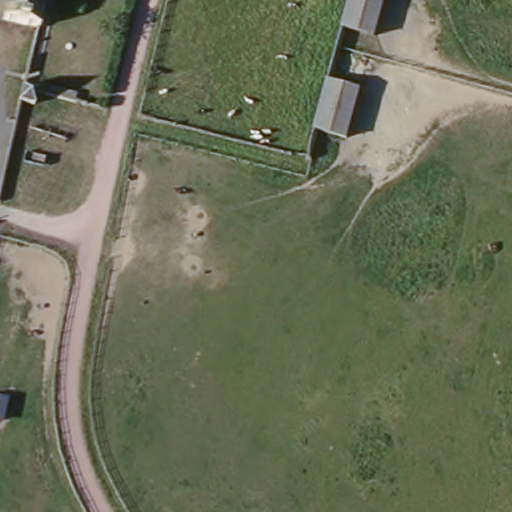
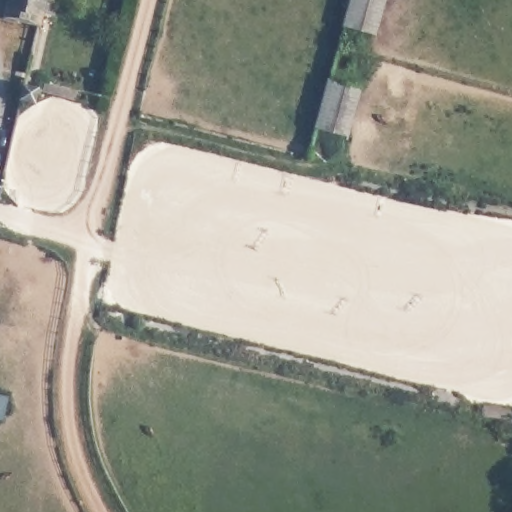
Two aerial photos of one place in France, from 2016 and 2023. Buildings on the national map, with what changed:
unchanged [(41,27),(4,18),(8,0),(47,0),(41,27)]
unchanged [(378,37),(350,27),(357,0),(389,0),(378,37)]
unchanged [(332,75),(360,82),(346,134),(318,127),(332,75)]
unchanged [(36,103),(21,100),(24,85),(39,89),(36,103)]

